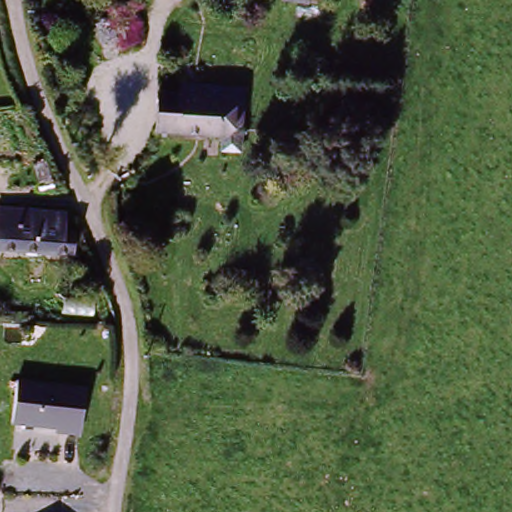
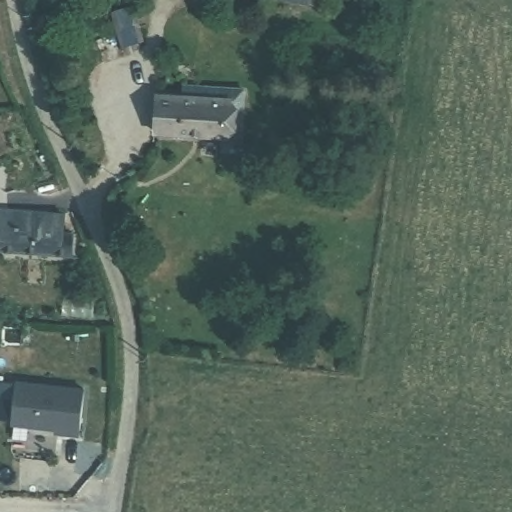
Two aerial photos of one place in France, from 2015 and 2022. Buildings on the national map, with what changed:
unchanged [(157,124),(159,96),(222,97),(222,125),(157,124)]
unchanged [(0,230),(0,214),(51,207),(55,224),(0,230)]
unchanged [(63,223),(67,249),(0,257),(0,230),(55,224),(63,223)]
unchanged [(82,391),(78,439),(54,437),(54,432),(9,427),(13,384),(82,391)]

